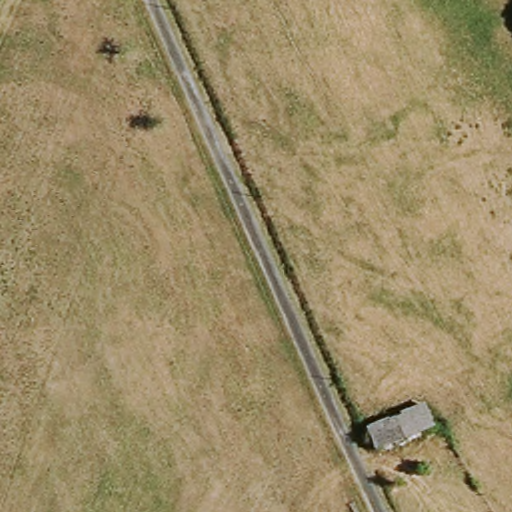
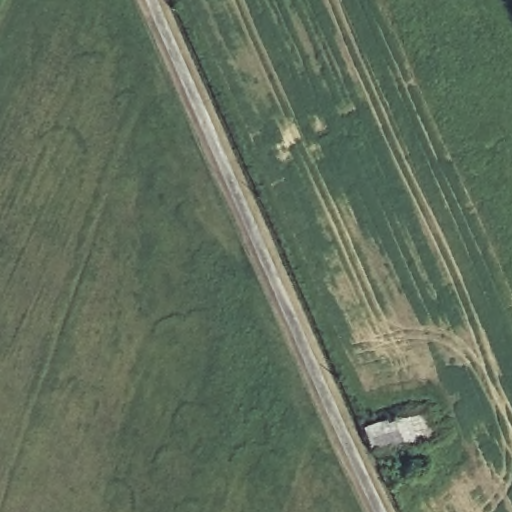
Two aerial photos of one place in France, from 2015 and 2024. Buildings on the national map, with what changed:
unchanged [(381,453),(374,429),(432,406),(441,431),(381,453)]

